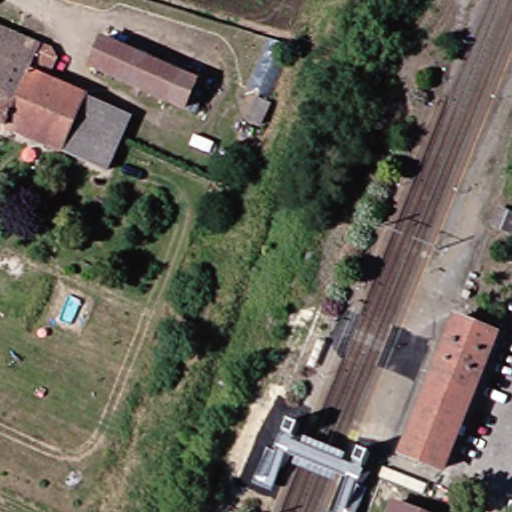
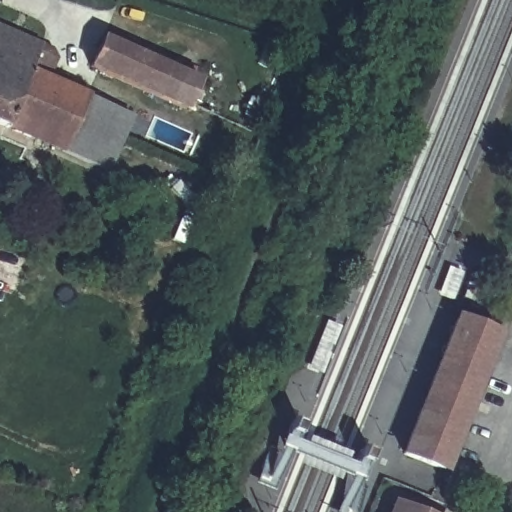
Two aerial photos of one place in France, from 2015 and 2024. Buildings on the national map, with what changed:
unchanged [(0,94),(0,31),(17,40),(36,49),(24,75),(13,99),(0,94)]
unchanged [(89,70),(101,43),(179,77),(167,104),(89,70)]
unchanged [(24,75),(79,100),(69,121),(55,151),(0,127),(0,94),(13,99),(24,75)]
unchanged [(55,151),(69,121),(79,100),(125,120),(123,124),(115,142),(102,172),(70,158),(55,151)]
unchanged [(391,454),(449,318),(494,335),(437,474),(391,454)]
unchanged [(395,499),(392,497),(394,494),(437,512),(390,512),(395,499)]

